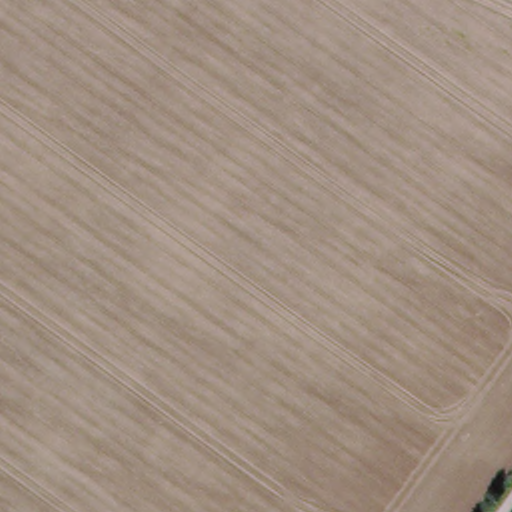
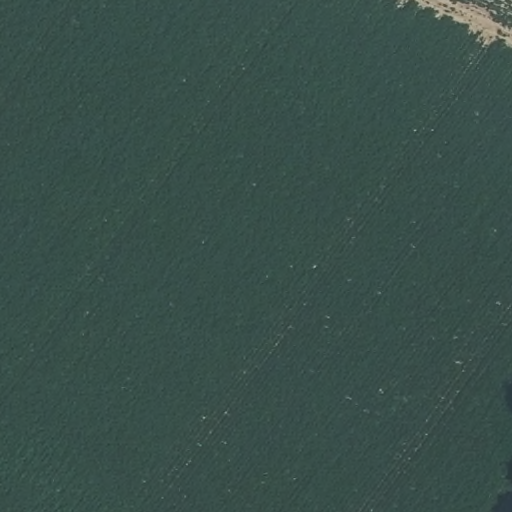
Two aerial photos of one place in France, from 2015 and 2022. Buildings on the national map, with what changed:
[]

